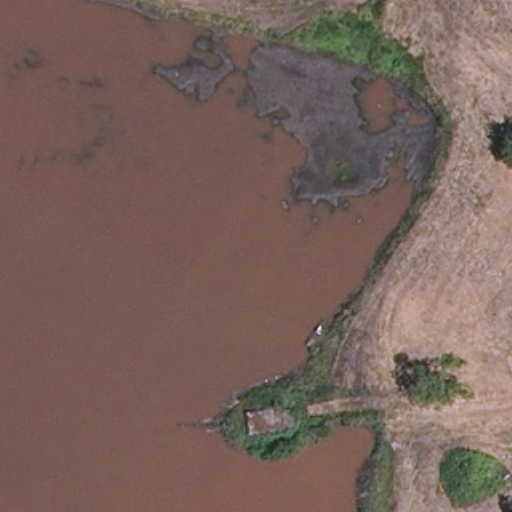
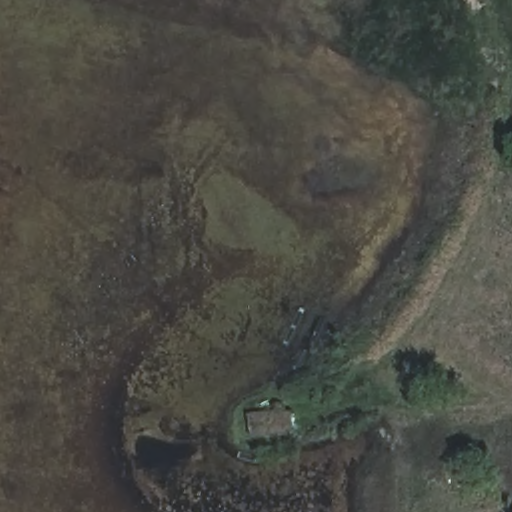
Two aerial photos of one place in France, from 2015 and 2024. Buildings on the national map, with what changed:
unchanged [(265,412),(267,430),(250,432),(249,411),(265,412)]

